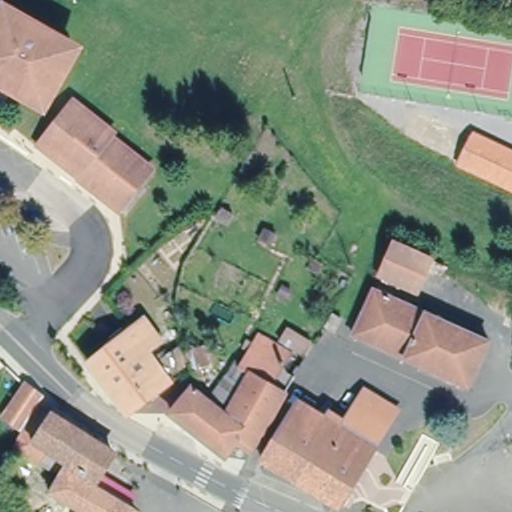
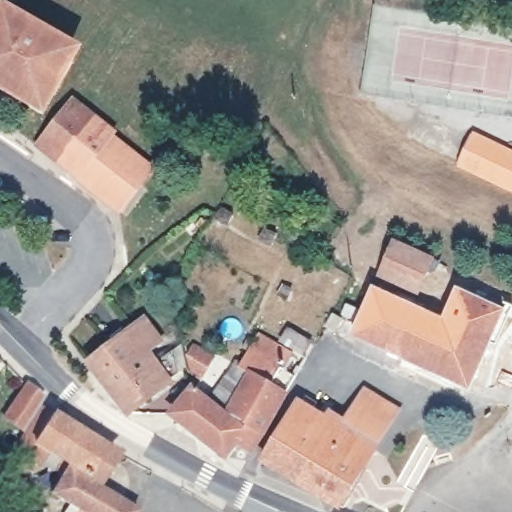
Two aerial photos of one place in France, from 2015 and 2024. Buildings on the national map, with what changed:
unchanged [(0,83),(0,19),(0,18),(5,10),(9,12),(10,9),(71,43),(69,47),(74,49),(68,57),(67,59),(72,62),(47,103),(43,100),(40,106),(19,94),(10,89),(0,83)]
unchanged [(44,141),(46,139),(76,100),(116,131),(112,135),(154,168),(121,209),(80,177),(81,176),(41,145),(44,141)]
unchanged [(471,132),(512,152),(512,187),(457,161),(471,132)]
unchanged [(396,243),(431,259),(417,290),(381,274),(396,243)]
new [(492,303),(491,297),(512,307),(512,318),(500,345),(489,341),(443,320),(456,287),(492,303)]
unchanged [(489,341),(469,385),(355,334),(375,289),(489,341)]
unchanged [(335,313),(343,318),(335,331),(328,326),(335,313)]
unchanged [(90,363),(146,318),(164,339),(149,351),(172,380),(130,414),(90,363)]
unchanged [(213,443),(169,408),(188,382),(205,394),(222,371),(228,375),(256,326),(275,336),(282,322),(306,335),(298,349),(302,352),(249,447),(234,438),(225,451),(213,443)]
unchanged [(136,505),(133,512),(74,512),(79,503),(53,488),(63,470),(28,450),(25,456),(10,447),(25,424),(0,408),(0,407),(4,401),(6,403),(25,378),(43,391),(40,398),(115,446),(94,480),(136,505)]
unchanged [(401,411),(381,445),(347,425),(366,391),(401,411)]
unchanged [(306,409),(312,398),(324,405),(317,416),(328,422),(331,416),(347,425),(381,445),(343,510),(269,466),(305,408),(306,409)]

